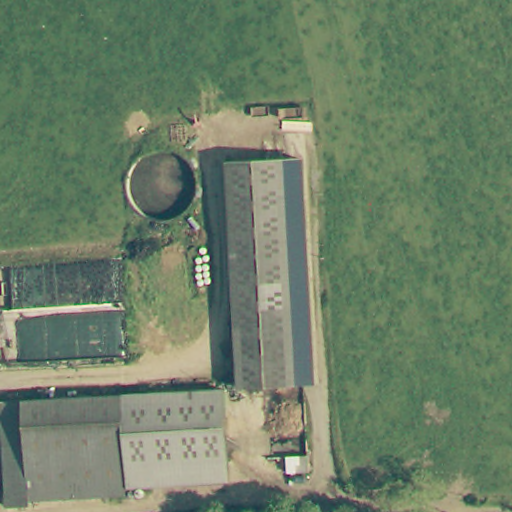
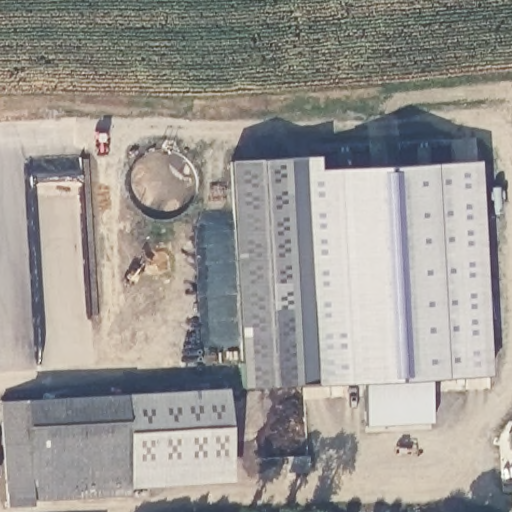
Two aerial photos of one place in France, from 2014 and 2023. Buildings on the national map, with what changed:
new [(288,158),(317,156),(318,169),(337,168),(431,163),(479,160),(491,374),(429,379),(432,422),(366,426),(364,382),(348,382),(316,384),(296,386),(288,158)]
unchanged [(288,158),(296,386),(240,387),(231,159),(288,158)]
unchanged [(125,496),(27,499),(27,492),(30,492),(26,398),(167,394),(224,393),(226,465),(169,467),(124,468),(125,496)]
unchanged [(28,504),(4,504),(0,399),(26,398),(30,492),(27,492),(27,499),(28,504)]

